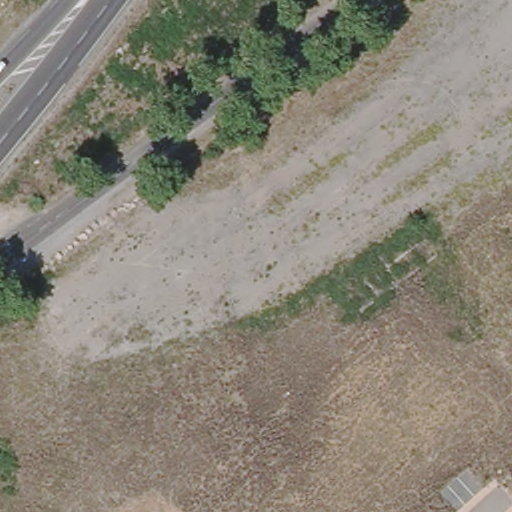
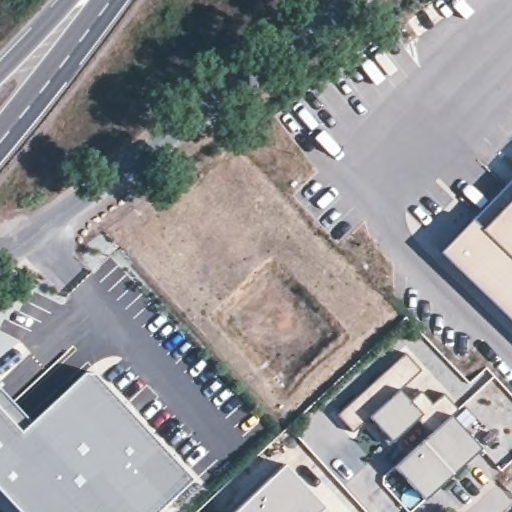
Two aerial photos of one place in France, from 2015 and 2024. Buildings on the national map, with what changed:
new [(512,172),(512,197),(489,220),(477,207),(512,172)]
new [(477,207),(489,220),(512,197),(512,322),(437,250),(477,207)]
new [(421,371),(397,392),(407,403),(418,393),(430,406),(443,394),(458,410),(463,406),(482,427),(469,438),(481,449),(424,501),(394,467),(430,435),(416,420),(388,445),(376,432),(379,429),(369,418),(353,433),(336,415),(405,353),(421,371)]
new [(32,423),(87,373),(97,375),(192,478),(156,512),(20,512),(0,491),(0,388),(1,387),(32,423)]
unchanged [(328,512),(232,512),(285,464),(328,512)]

